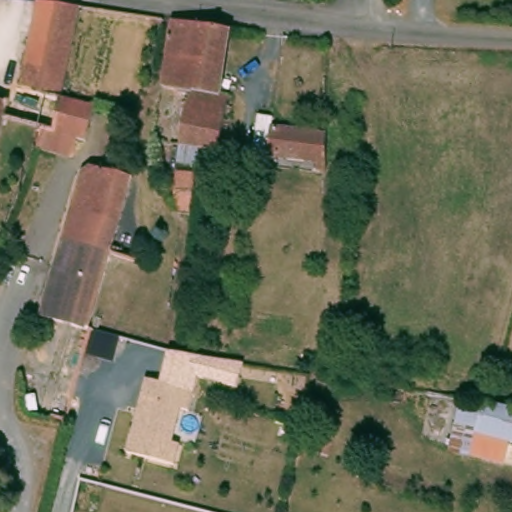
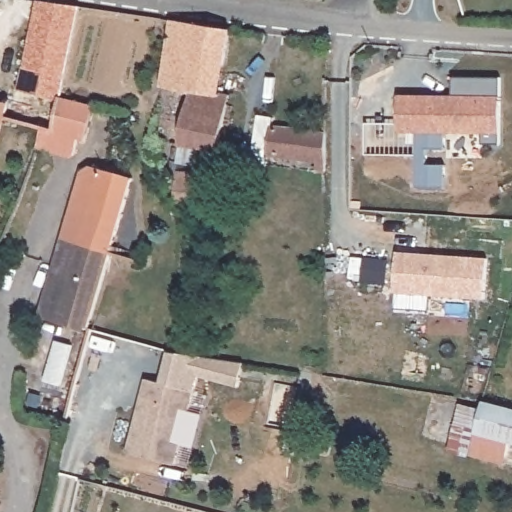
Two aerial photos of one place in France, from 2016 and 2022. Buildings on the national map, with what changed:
unchanged [(10,88),(19,89),(25,51),(32,1),(76,8),(59,88),(59,89),(59,91),(50,133),(41,131),(27,127),(14,123),(2,120),(0,126),(0,102),(6,104),(10,88)]
unchanged [(224,31),(220,66),(161,55),(166,21),(224,31)]
unchanged [(220,66),(216,95),(186,90),(156,85),(161,55),(220,66)]
new [(403,93),(456,97),(458,76),(506,79),(502,146),(484,145),(485,133),(401,127),(403,93)]
unchanged [(216,95),(225,97),(212,152),(178,149),(186,90),(216,95)]
unchanged [(41,131),(50,133),(59,91),(66,92),(64,101),(90,107),(78,142),(76,141),(74,140),(69,159),(66,158),(33,148),(41,131)]
unchanged [(326,173),(327,164),(277,157),(276,167),(262,166),(268,118),(282,120),(281,127),(335,134),(335,174),(326,173)]
unchanged [(40,314),(36,312),(46,278),(62,225),(78,171),(81,166),(82,166),(84,163),(100,167),(126,174),(109,232),(90,295),(82,323),(56,320),(40,314)]
unchanged [(169,213),(171,174),(187,175),(186,214),(169,213)]
new [(397,254),(466,259),(463,299),(395,295),(397,254)]
unchanged [(237,387),(196,378),(192,391),(161,384),(169,351),(244,364),(237,387)]
unchanged [(192,391),(188,414),(175,412),(170,444),(178,445),(175,463),(128,454),(145,381),(192,391)]
unchanged [(467,456),(443,451),(457,401),(478,405),(512,412),(512,468),(467,456)]

